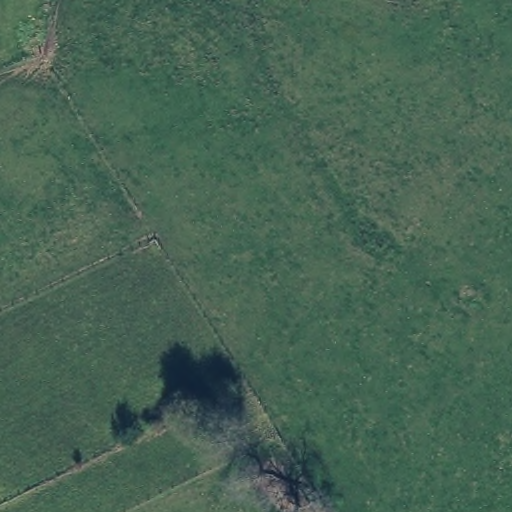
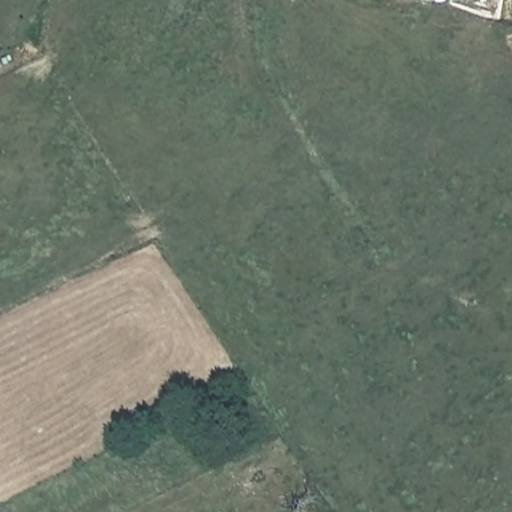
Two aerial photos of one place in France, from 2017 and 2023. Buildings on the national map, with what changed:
[]

